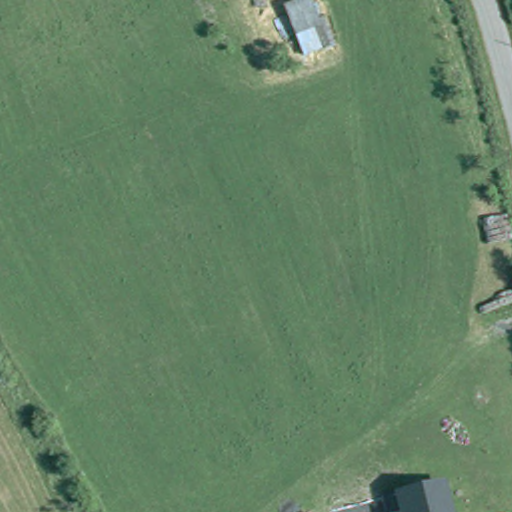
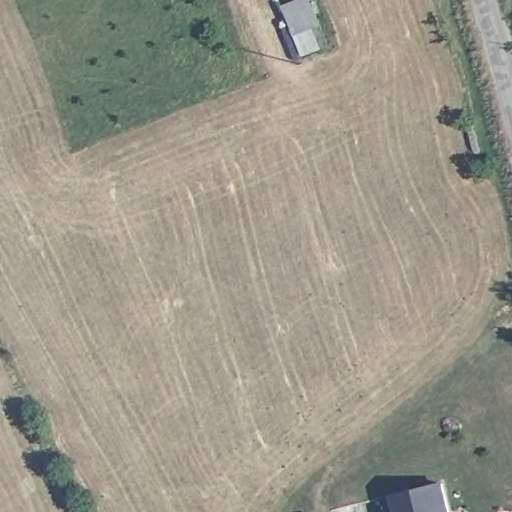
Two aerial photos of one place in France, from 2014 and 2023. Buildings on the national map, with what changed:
unchanged [(323,31),(333,47),(304,59),(296,35),(323,31)]
unchanged [(445,479),(453,512),(397,512),(392,490),(445,479)]

